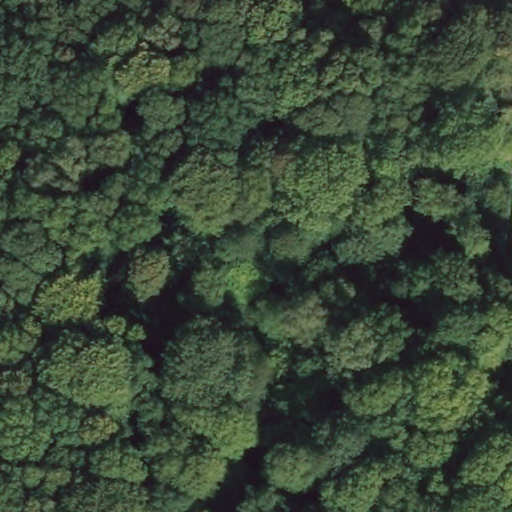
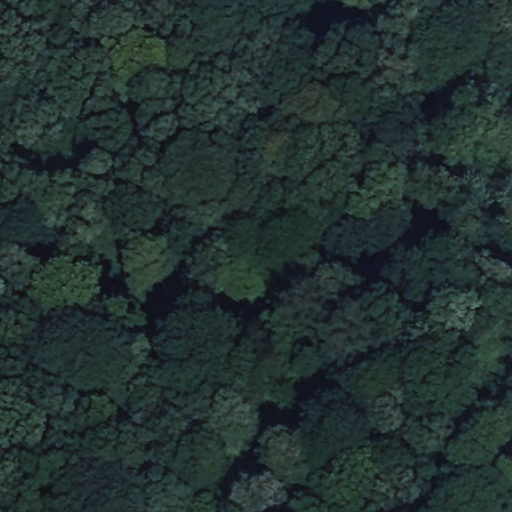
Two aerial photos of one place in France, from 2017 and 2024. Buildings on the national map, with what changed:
[]

